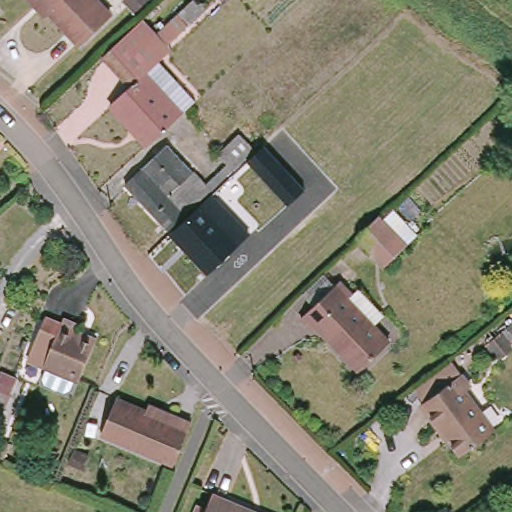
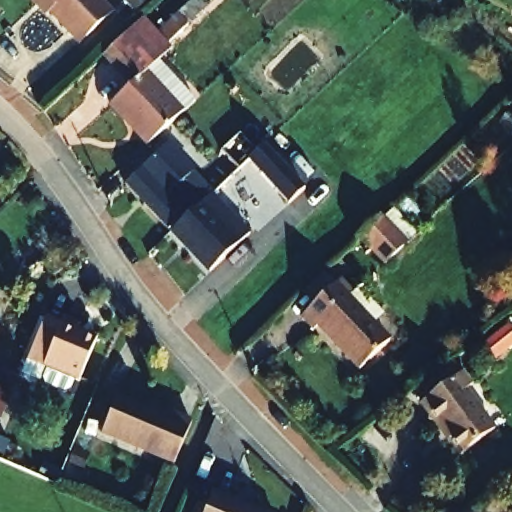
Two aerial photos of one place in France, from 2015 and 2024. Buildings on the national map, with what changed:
unchanged [(27,0),(95,0),(105,11),(70,43),(40,9),(35,12),(27,0)]
unchanged [(192,32),(165,57),(168,61),(164,66),(198,106),(167,133),(152,147),(127,119),(122,122),(109,106),(128,90),(116,75),(158,37),(180,18),(192,32)]
unchanged [(145,21),(158,37),(116,75),(102,59),(145,21)]
unchanged [(224,230),(203,206),(190,218),(187,215),(170,197),(195,173),(205,182),(227,163),(219,155),(240,133),(258,152),(270,141),(308,183),(287,204),(247,160),(215,192),(236,219),(224,230)]
unchanged [(170,147),(195,173),(170,197),(145,171),(170,147)]
unchanged [(170,197),(187,215),(170,230),(130,186),(145,171),(170,197)]
unchanged [(224,230),(236,219),(252,237),(212,274),(173,233),(190,218),(203,206),(224,230)]
unchanged [(275,221),(283,231),(264,249),(255,237),(275,221)]
unchanged [(354,242),(375,222),(391,238),(370,258),(354,242)]
unchanged [(357,378),(317,335),(310,340),(298,326),(340,287),(352,300),(350,305),(388,349),(357,378)]
unchanged [(67,331),(72,323),(87,330),(85,338),(103,346),(87,385),(35,365),(53,324),(67,331)]
unchanged [(459,453),(427,412),(424,415),(415,402),(458,370),(469,384),(465,387),(494,425),(459,453)]
unchanged [(99,436),(114,400),(169,423),(173,416),(187,423),(170,465),(99,436)]
unchanged [(249,512),(208,512),(214,498),(249,512)]

